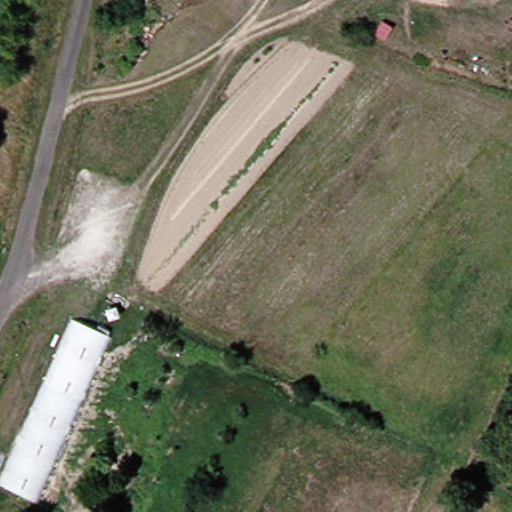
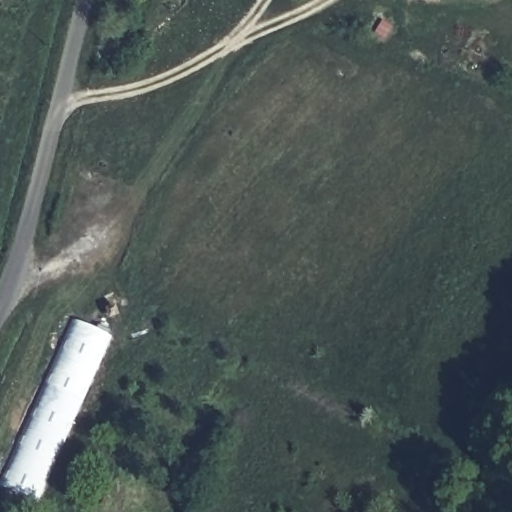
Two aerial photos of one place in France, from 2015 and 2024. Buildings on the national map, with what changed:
unchanged [(79,316),(114,330),(40,501),(4,483),(79,316)]

